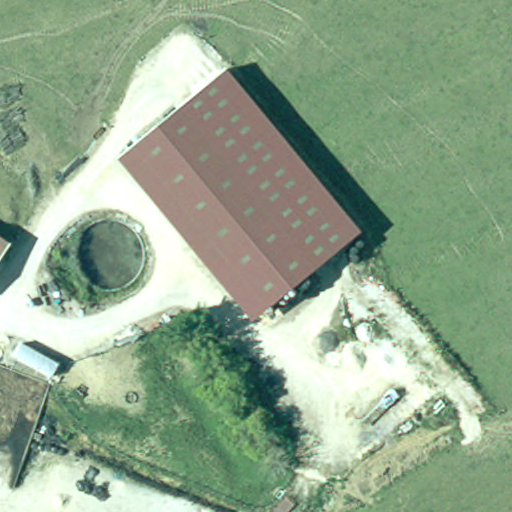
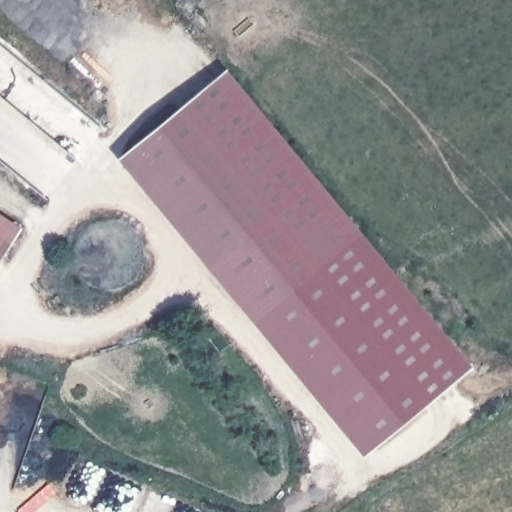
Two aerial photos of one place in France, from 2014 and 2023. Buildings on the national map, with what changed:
unchanged [(360,228),(267,304),(132,143),(224,65),(360,228)]
unchanged [(132,143),(267,304),(252,317),(118,156),(132,143)]
new [(470,368),(362,455),(252,317),(267,304),(360,228),(470,368)]
unchanged [(0,242),(0,236),(3,238),(0,242)]

